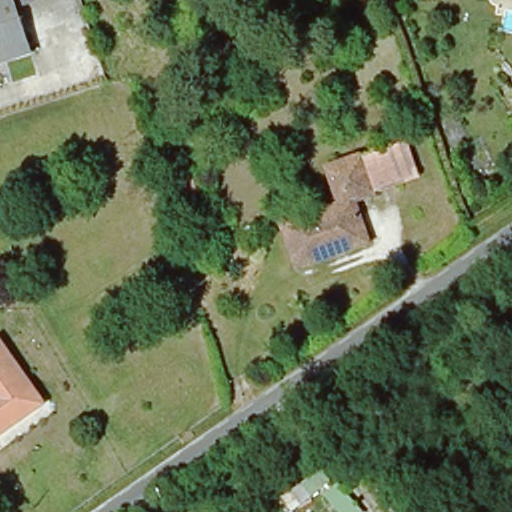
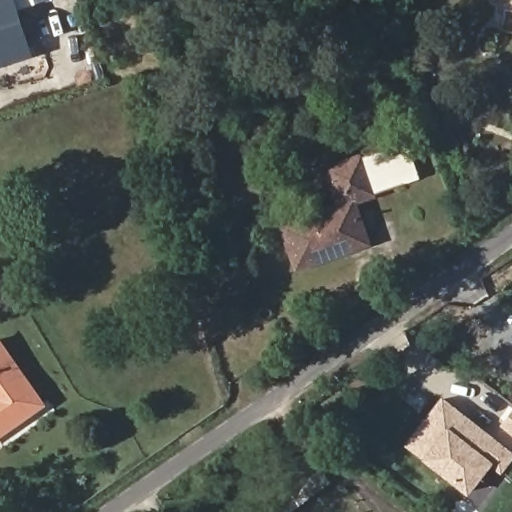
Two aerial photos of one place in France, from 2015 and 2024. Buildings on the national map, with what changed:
unchanged [(43,0),(45,6),(6,19),(20,63),(0,69),(0,0),(43,0)]
unchanged [(334,208),(323,169),(390,146),(403,187),(351,206),(366,245),(292,268),(280,227),(334,208)]
unchanged [(183,212),(175,191),(196,184),(204,206),(183,212)]
unchanged [(0,436),(0,339),(5,336),(49,401),(0,436)]
new [(512,451),(512,457),(502,470),(491,462),(469,490),(409,443),(445,397),(512,451)]
unchanged [(275,500),(320,467),(330,481),(286,512),(285,512),(275,500)]

